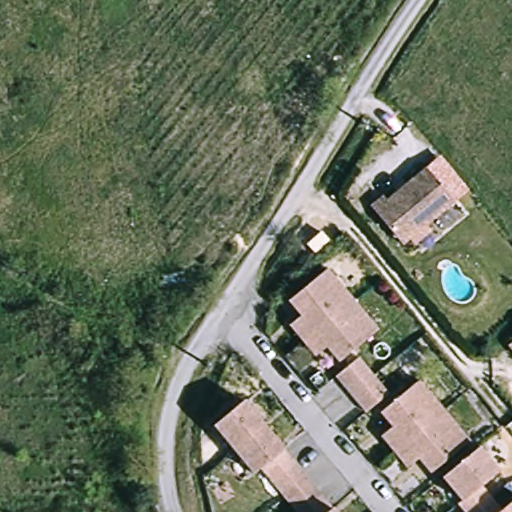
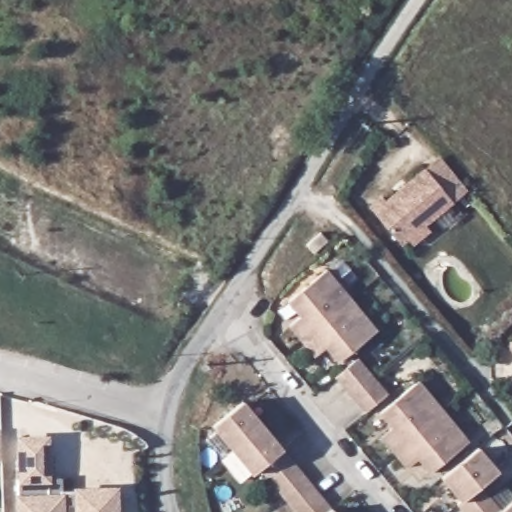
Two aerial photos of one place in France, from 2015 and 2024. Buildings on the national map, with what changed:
unchanged [(415,252),(406,242),(403,244),(374,209),(385,199),(389,205),(420,178),(445,209),(423,229),(431,239),(415,252)]
unchanged [(323,267),(377,333),(338,364),(326,352),(316,359),(287,327),(300,318),(283,298),(323,267)]
unchanged [(510,347),(512,345),(512,350),(510,347)]
unchanged [(365,362),(391,393),(366,413),(339,382),(365,362)]
unchanged [(422,382),(471,440),(431,473),(420,461),(409,470),(383,438),(394,431),(382,414),(422,382)]
unchanged [(262,471),(255,477),(217,429),(246,404),(333,512),(297,512),(262,471)]
new [(1,429),(2,461),(0,461),(0,429),(1,429)]
unchanged [(508,478),(480,499),(491,512),(466,512),(467,511),(447,484),(486,453),(508,478)]
new [(18,478),(49,477),(49,494),(61,494),(61,489),(117,487),(118,512),(19,512),(18,478)]

